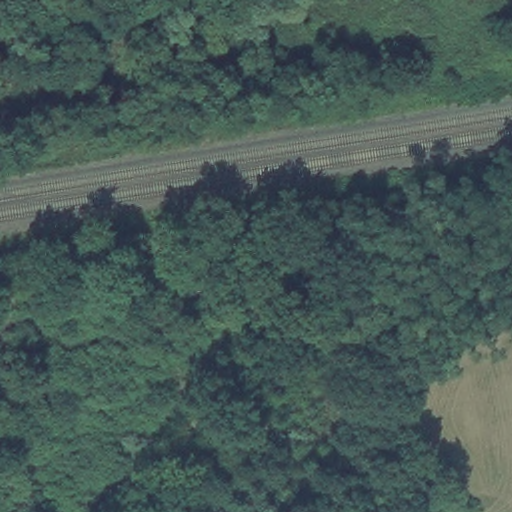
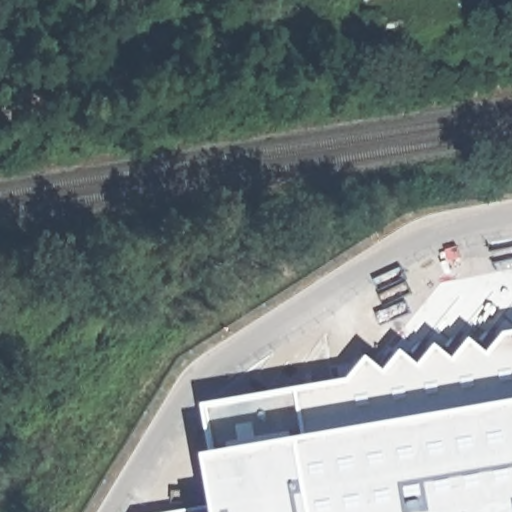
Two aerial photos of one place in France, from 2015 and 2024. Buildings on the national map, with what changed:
new [(374,360),(392,372),(410,352),(428,368),(447,346),(461,360),(477,340),(495,353),(509,334),(512,334),(512,512),(184,512),(224,507),(205,407),(353,382),(374,360)]

